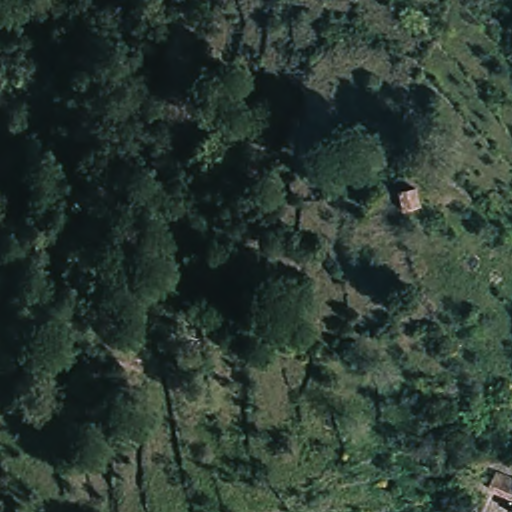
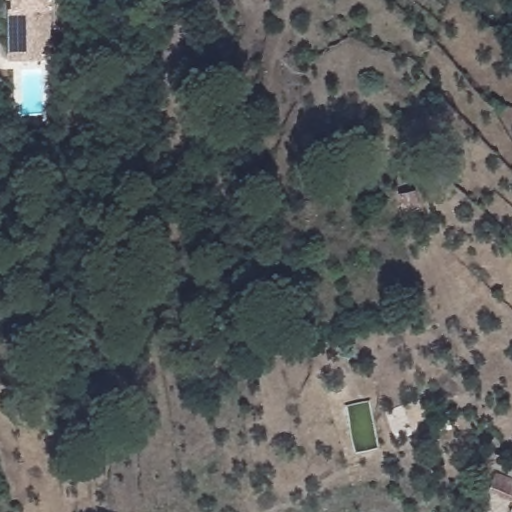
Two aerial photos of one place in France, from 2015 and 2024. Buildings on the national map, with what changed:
new [(51,9),(51,59),(10,60),(10,7),(13,7),(13,0),(51,0),(51,9)]
demolished [(21,6),(43,7),(42,26),(20,22),(21,6)]
unchanged [(417,187),(420,204),(405,207),(402,206),(401,190),(417,187)]
unchanged [(501,473),(507,460),(512,462),(512,477),(501,473)]
unchanged [(512,509),(512,512),(504,512),(507,507),(512,509)]

